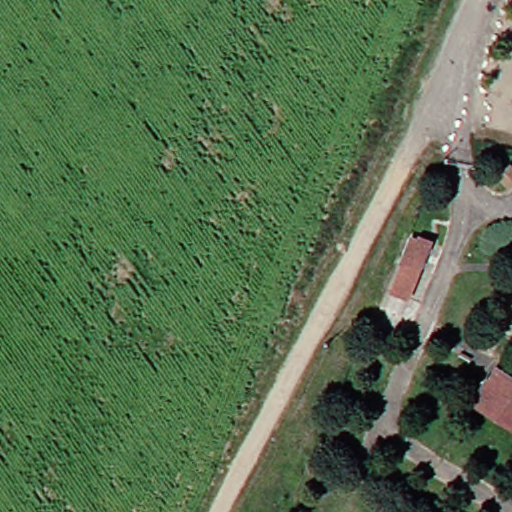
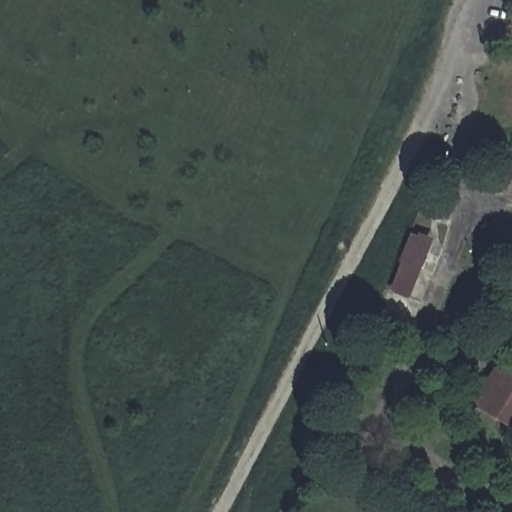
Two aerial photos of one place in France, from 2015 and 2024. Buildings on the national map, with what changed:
unchanged [(402,299),(398,297),(381,336),(369,329),(384,293),(405,234),(409,237),(412,232),(427,240),(402,299)]
unchanged [(487,372),(512,388),(512,419),(474,396),(487,372)]

